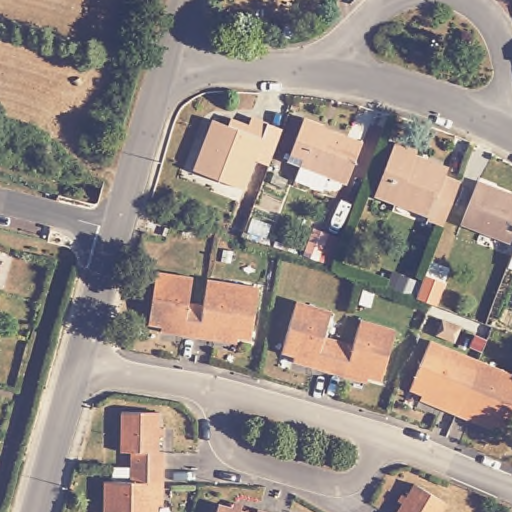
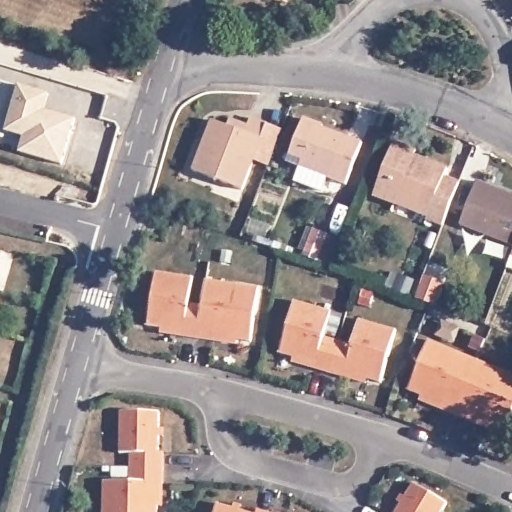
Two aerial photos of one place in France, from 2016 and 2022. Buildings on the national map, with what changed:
unchanged [(293,1),(290,0),(293,0),(293,1)]
new [(18,84),(49,91),(45,108),(76,117),(61,162),(20,150),(24,135),(5,129),(18,84)]
unchanged [(324,120),(364,135),(348,176),(329,169),(324,183),(296,172),(302,155),(296,152),(297,149),(292,147),(305,110),(325,117),(324,120)]
unchanged [(226,121),(244,127),(248,119),(264,126),(279,131),(270,154),(265,168),(250,162),(238,192),(189,173),(208,122),(224,128),(226,121)]
unchanged [(415,156),(430,162),(432,158),(450,166),(447,175),(461,180),(445,223),(429,216),(431,210),(398,198),(397,201),(375,192),(396,140),(419,148),(415,156)]
unchanged [(490,186),(489,189),(512,199),(512,243),(511,245),(456,223),(474,179),(490,186)]
unchanged [(327,233),(320,255),(306,251),(313,228),(327,233)]
unchanged [(503,266),(511,245),(512,243),(512,270),(503,266)]
unchanged [(443,276),(435,299),(417,293),(426,269),(443,276)]
unchanged [(215,339),(184,334),(162,330),(163,325),(151,323),(159,270),(191,276),(187,301),(204,304),(209,278),(259,287),(250,339),(238,337),(237,343),(215,339)]
unchanged [(343,375),(313,366),(292,360),(294,355),(281,351),(295,300),(328,309),(321,334),(354,343),(361,319),(395,328),(379,379),(366,375),(365,381),(343,375)]
unchanged [(469,418),(441,406),(420,398),(422,392),(409,387),(428,339),(512,373),(512,407),(504,426),(492,420),(489,427),(469,418)]
unchanged [(158,512),(105,512),(106,481),(133,481),(133,452),(122,452),(122,415),(160,415),(159,429),(165,429),(165,437),(159,437),(159,450),(164,451),(164,482),(164,504),(158,504),(158,512)]
unchanged [(246,504),(245,509),(252,512),(221,512),(224,503),(237,507),(238,501),(246,504)]
unchanged [(274,512),(258,512),(259,507),(274,512)]

